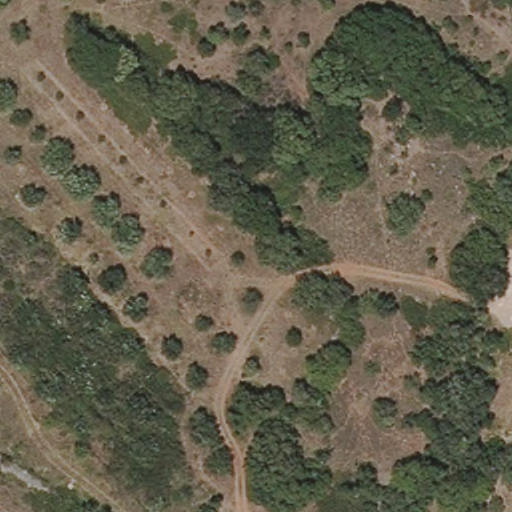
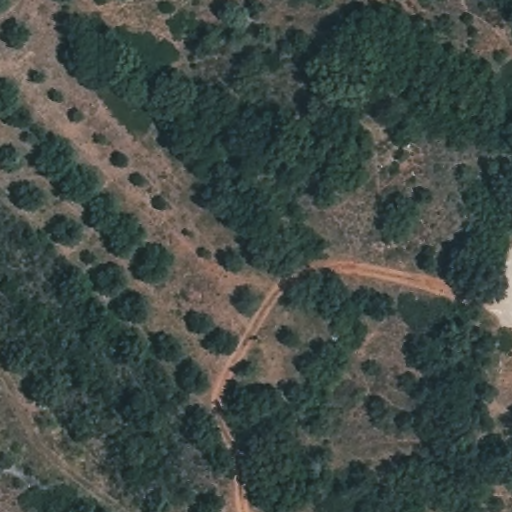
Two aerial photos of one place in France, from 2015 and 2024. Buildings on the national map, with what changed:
unchanged [(1,385),(0,387),(0,384),(1,385)]

